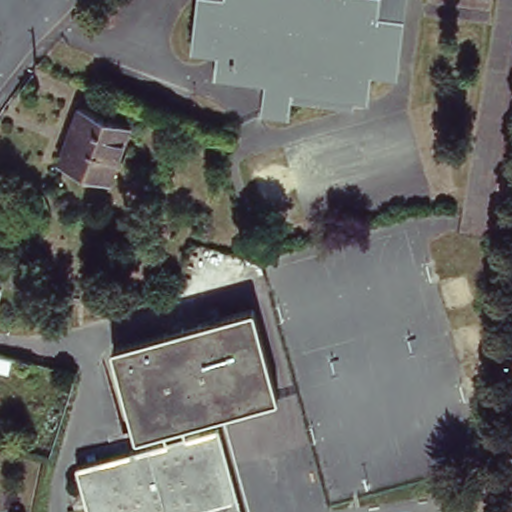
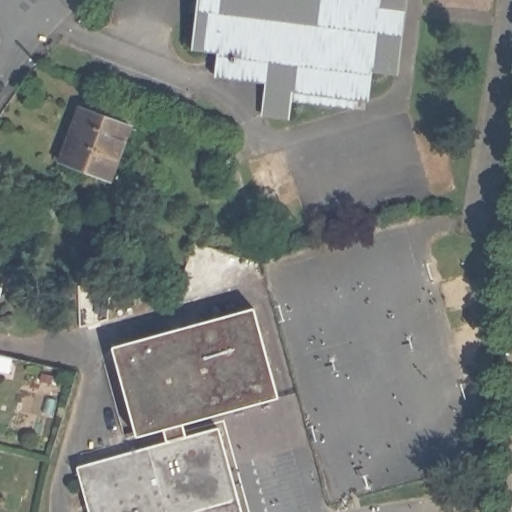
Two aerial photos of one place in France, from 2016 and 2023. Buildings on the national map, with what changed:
unchanged [(396,67),(370,64),(366,94),(355,91),(354,104),(289,95),(287,112),(263,109),(267,75),(218,69),(220,45),(195,42),(200,0),(404,0),(396,67)]
unchanged [(136,126),(116,180),(65,161),(85,107),(136,126)]
unchanged [(4,275),(0,294),(0,274),(4,275)]
unchanged [(169,436),(165,425),(138,432),(113,343),(231,308),(255,301),(258,315),(280,394),(185,420),(189,431),(219,422),(244,512),(90,512),(77,463),(169,436)]
unchanged [(21,392),(0,388),(0,369),(25,375),(21,392)]

